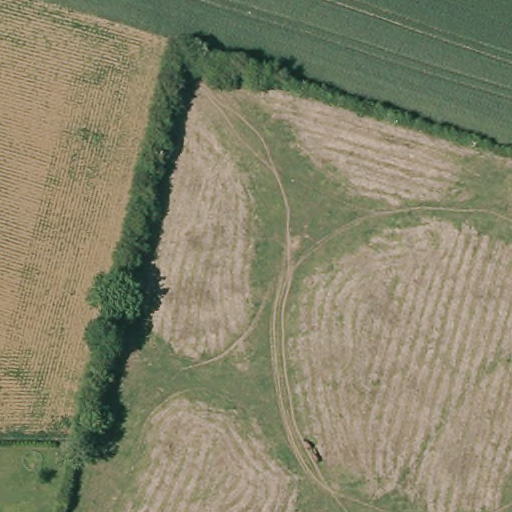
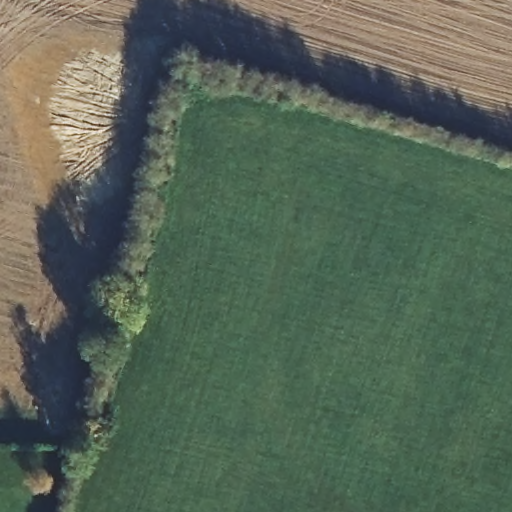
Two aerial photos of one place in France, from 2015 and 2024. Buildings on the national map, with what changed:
[]

